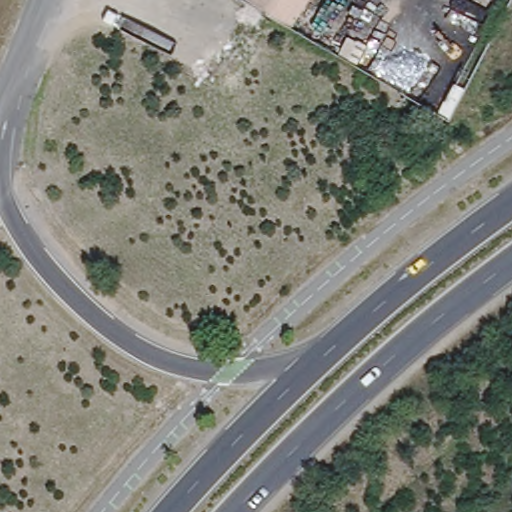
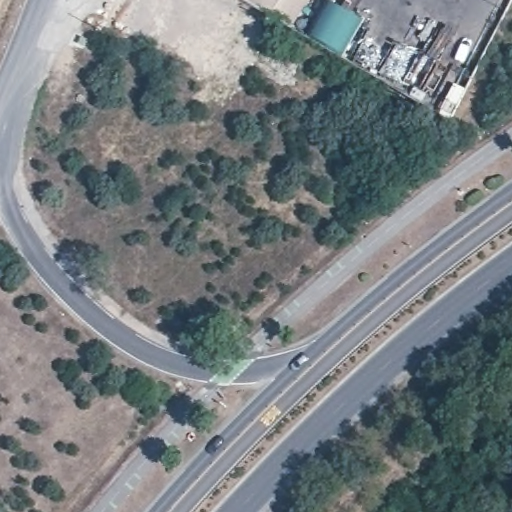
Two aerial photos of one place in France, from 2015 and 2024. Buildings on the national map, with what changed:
unchanged [(296,29),(247,0),(314,0),(296,29)]

